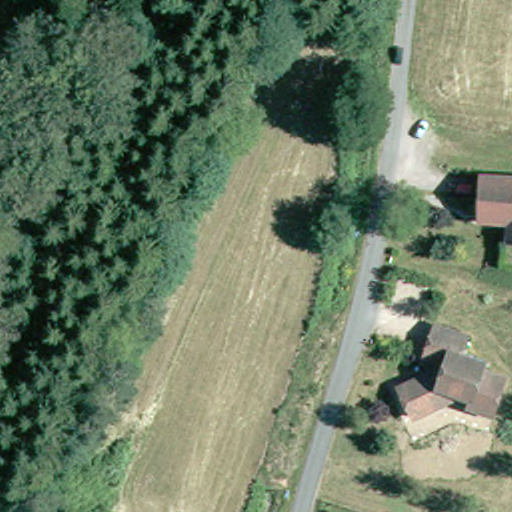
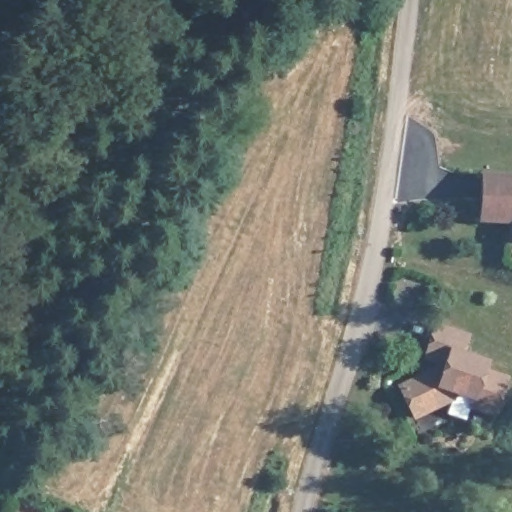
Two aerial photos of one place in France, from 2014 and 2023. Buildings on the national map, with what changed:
unchanged [(512,178),(512,225),(486,221),(490,176),(512,178)]
unchanged [(451,365),(452,360),(431,352),(444,321),(473,332),(467,349),(492,359),(488,367),(510,376),(496,411),(472,402),(476,393),(458,387),(456,394),(422,412),(407,385),(442,365),(451,365)]

